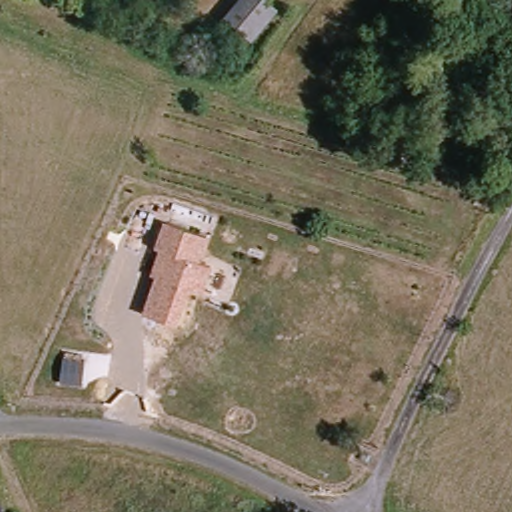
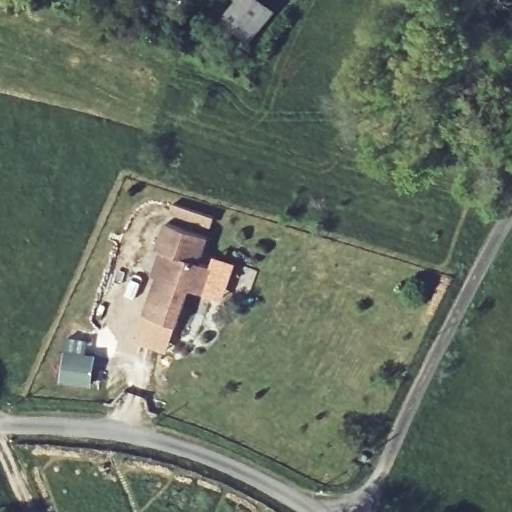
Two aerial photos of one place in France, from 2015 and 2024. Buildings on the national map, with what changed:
unchanged [(240,0),(267,0),(280,11),(251,43),(224,21),(240,0)]
unchanged [(168,219),(207,233),(200,256),(215,262),(205,291),(191,286),(177,324),(145,313),(167,249),(159,247),(168,219)]

